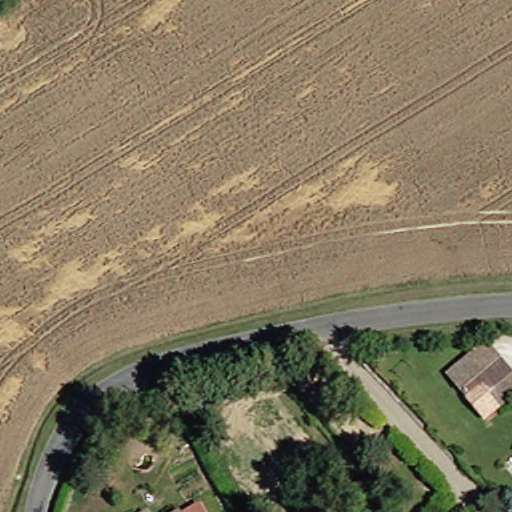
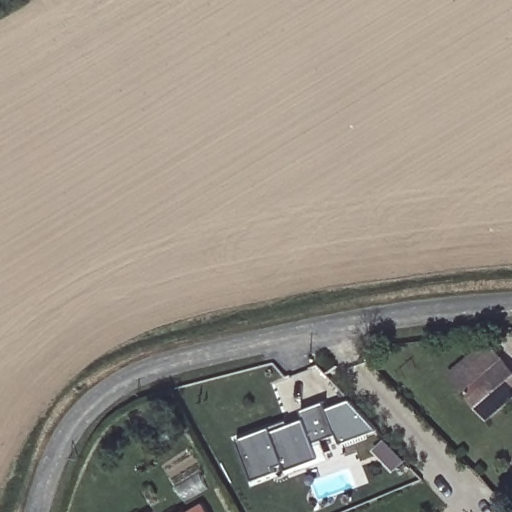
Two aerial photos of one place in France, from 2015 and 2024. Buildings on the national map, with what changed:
unchanged [(496,392),(482,374),(506,355),(512,363),(512,397),(504,402),(496,392)]
new [(336,436),(323,441),(331,463),(288,478),(283,467),(275,470),(277,475),(253,483),(238,441),(289,421),(290,426),(304,421),(301,412),(324,404),(336,436)]
unchanged [(157,512),(151,512),(156,509),(157,512)]

